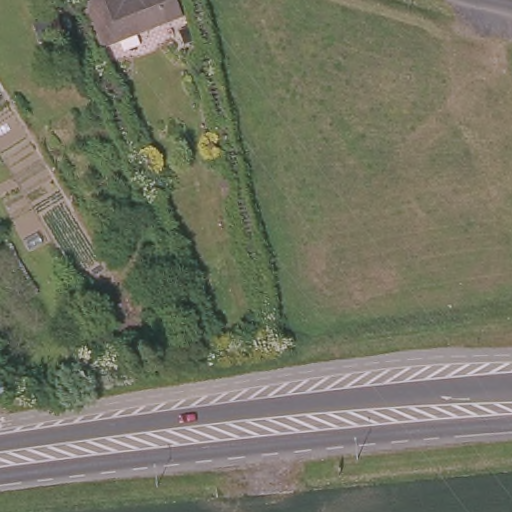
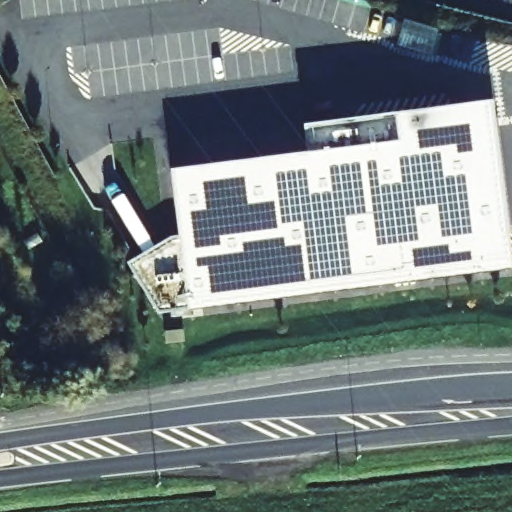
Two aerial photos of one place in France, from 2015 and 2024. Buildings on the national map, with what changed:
demolished [(153,26),(97,44),(82,0),(123,0),(125,0),(172,0),(178,19),(153,26)]
new [(500,159),(510,260),(160,305),(133,264),(178,238),(173,166),(307,149),(303,119),(471,95),(492,114),(500,159)]

